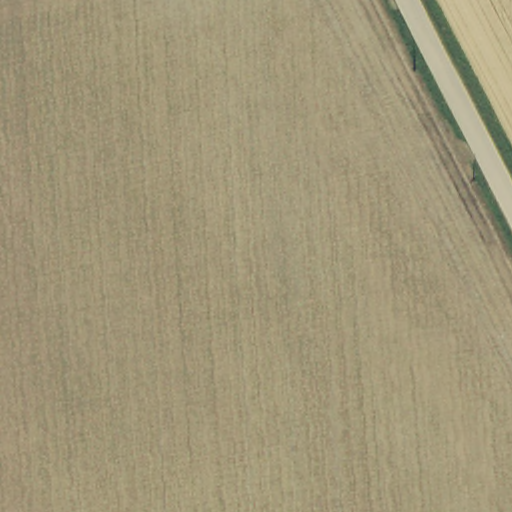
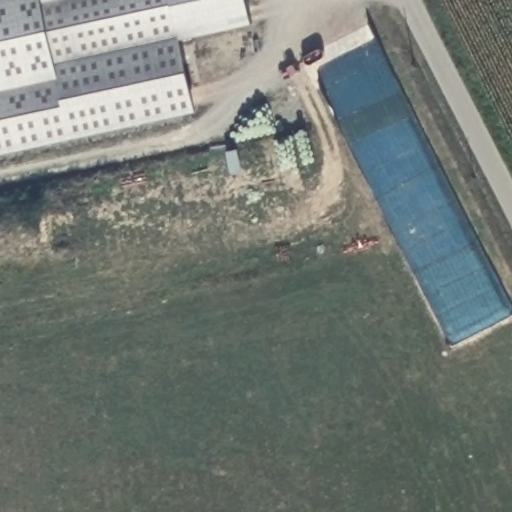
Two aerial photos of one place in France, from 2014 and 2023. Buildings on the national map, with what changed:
new [(252,25),(180,41),(196,112),(0,154),(0,0),(246,0),(252,25)]

